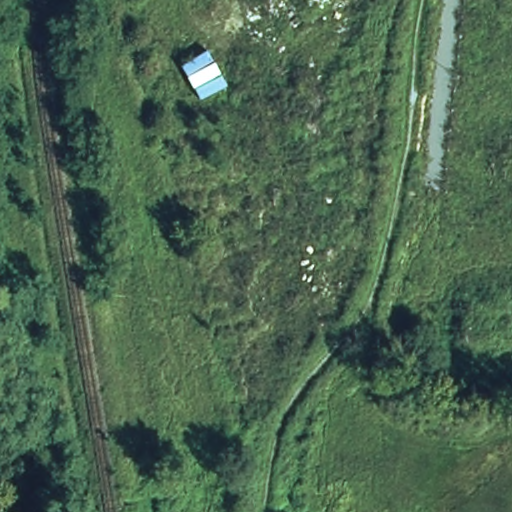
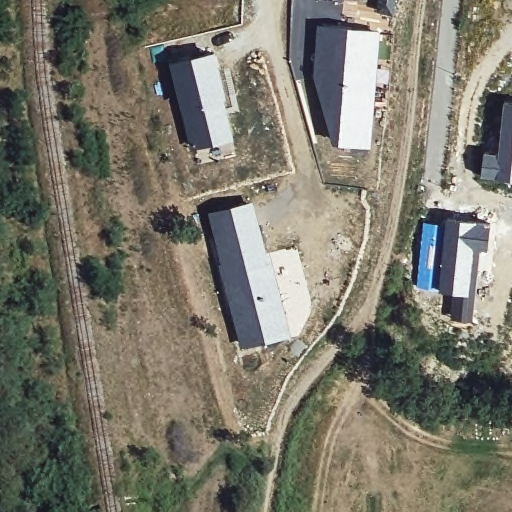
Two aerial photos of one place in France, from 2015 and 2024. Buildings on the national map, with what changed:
new [(371,144),(339,142),(318,76),(320,32),(379,34),(371,144)]
demolished [(209,50),(220,72),(229,89),(200,101),(186,73),(182,65),(209,50)]
new [(233,138),(195,147),(185,106),(175,67),(214,56),(224,96),(233,138)]
new [(498,151),(504,100),(512,101),(512,180),(481,176),(484,150),(498,151)]
new [(272,252),(293,336),(244,350),(209,215),(255,202),(269,253),(272,252)]
new [(428,288),(434,244),(440,244),(444,216),(491,221),(489,250),(478,249),(473,293),(473,321),(447,317),(450,292),(428,288)]

